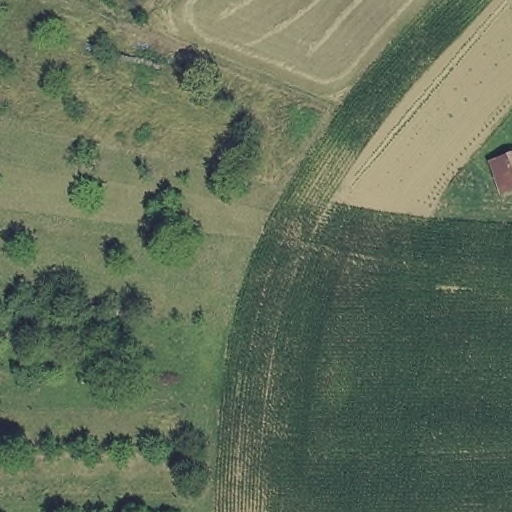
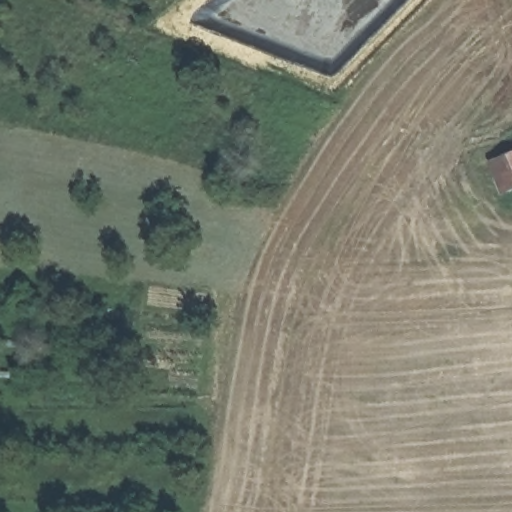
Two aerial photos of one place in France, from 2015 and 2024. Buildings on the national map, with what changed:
unchanged [(486,163),(512,153),(512,190),(496,196),(486,163)]

